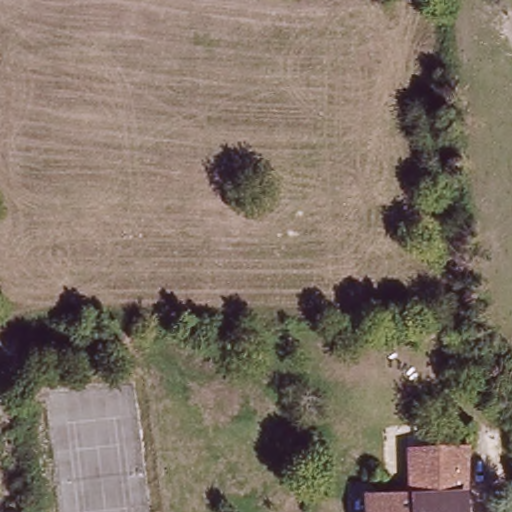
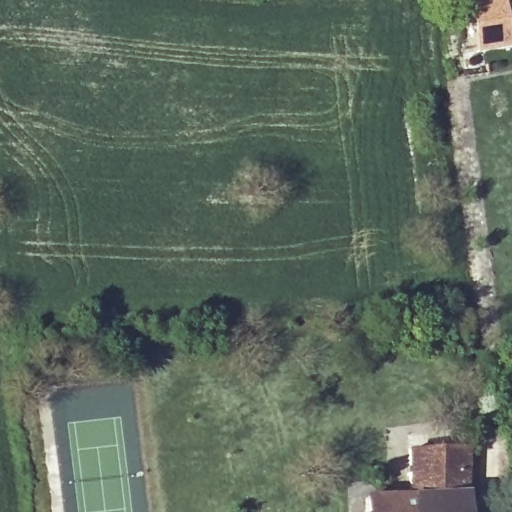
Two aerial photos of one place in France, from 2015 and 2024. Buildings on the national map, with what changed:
new [(502,0),(505,0),(512,41),(512,45),(477,50),(469,5),(502,0)]
unchanged [(370,512),(370,498),(411,496),(409,453),(473,451),(472,512),(370,512)]

